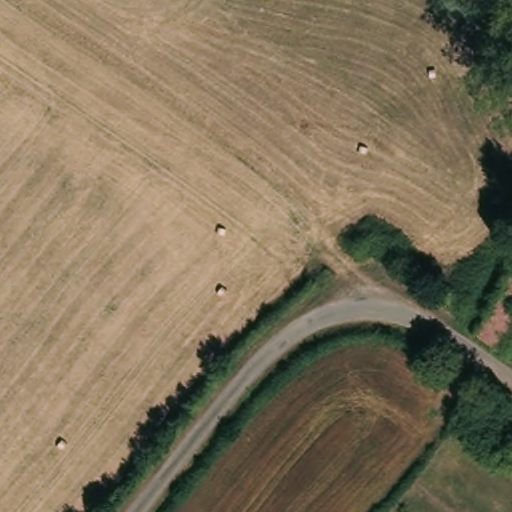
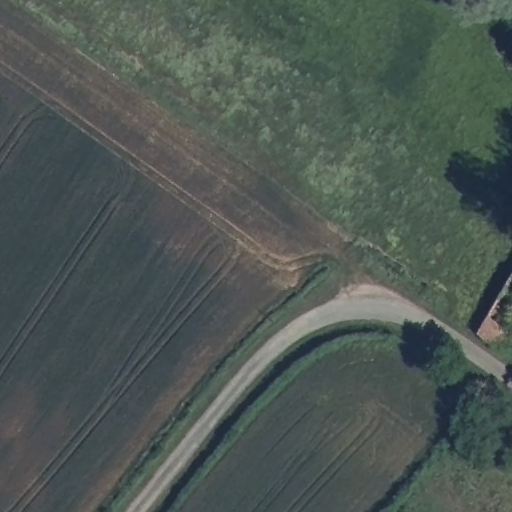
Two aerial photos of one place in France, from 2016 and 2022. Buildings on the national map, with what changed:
unchanged [(505,267),(512,274),(512,329),(496,361),(476,340),(505,267)]

